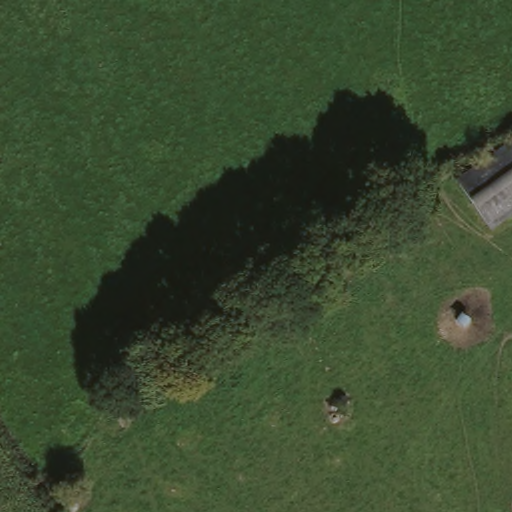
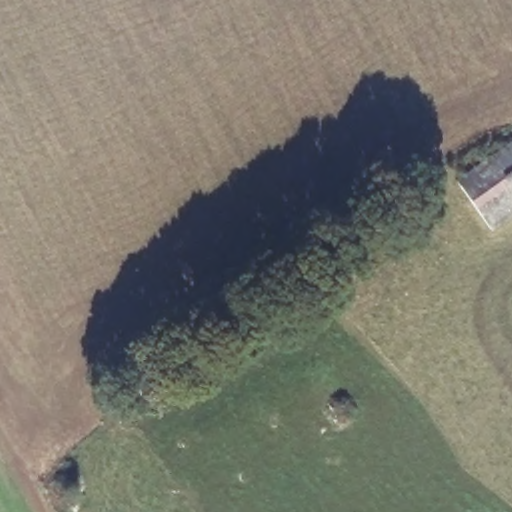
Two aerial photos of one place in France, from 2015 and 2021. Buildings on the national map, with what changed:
unchanged [(453,187),(512,146),(512,217),(488,235),(453,187)]

